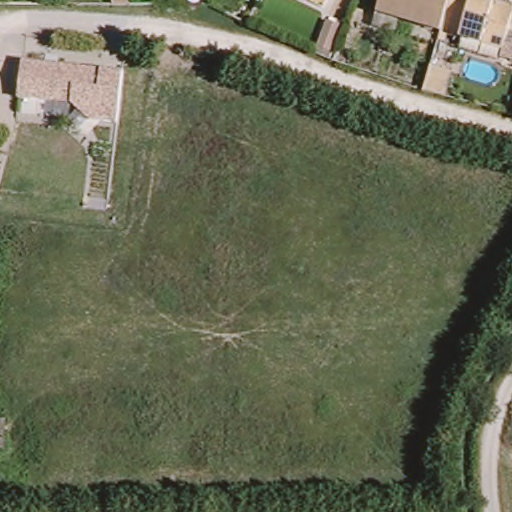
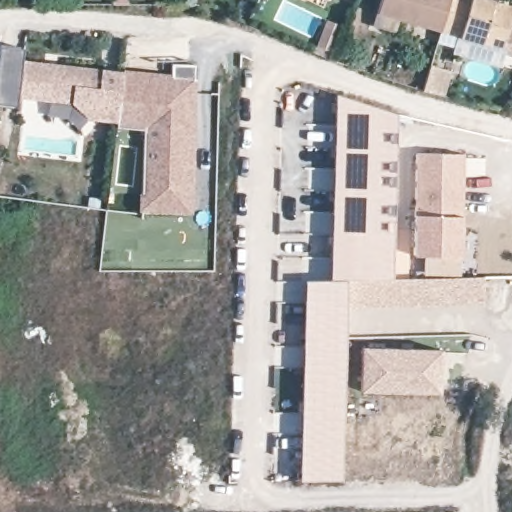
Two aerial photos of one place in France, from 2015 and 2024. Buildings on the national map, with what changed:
unchanged [(448,22),(442,39),(380,22),(386,0),(453,0),(448,22)]
unchanged [(453,0),(500,0),(499,2),(512,6),(512,21),(506,54),(466,43),(469,26),(448,22),(453,0)]
unchanged [(321,20),(338,26),(328,59),(311,52),(321,20)]
new [(15,98),(17,98),(16,107),(0,105),(0,45),(23,47),(23,60),(19,60),(15,98)]
unchanged [(19,60),(98,69),(116,72),(111,118),(85,119),(69,106),(15,98),(19,60)]
new [(171,73),(171,64),(194,65),(194,79),(196,79),(191,213),(139,212),(139,194),(141,194),(143,130),(117,128),(117,125),(93,119),(111,118),(116,72),(123,69),(171,73)]
unchanged [(421,92),(426,66),(446,71),(441,97),(421,92)]
new [(336,95),(399,113),(394,279),(346,280),(329,279),(336,95)]
unchanged [(511,113),(512,108),(512,113),(511,113)]
new [(415,153),(466,154),(466,158),(465,177),(463,215),(413,212),(415,153)]
new [(413,212),(463,215),(460,276),(422,276),(423,257),(412,257),(413,212)]
new [(484,302),(347,304),(346,280),(394,279),(422,276),(460,276),(483,276),(484,302)]
new [(304,279),(329,279),(346,280),(348,337),(345,378),(343,482),(299,481),(304,279)]
new [(361,346),(441,349),(440,393),(359,393),(361,346)]
unchanged [(6,452),(0,452),(0,417),(10,417),(6,452)]

